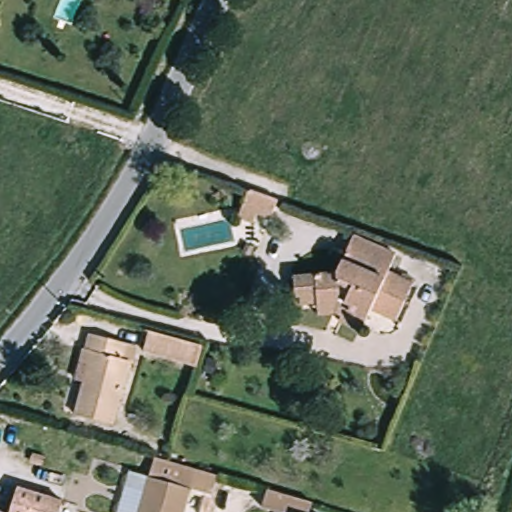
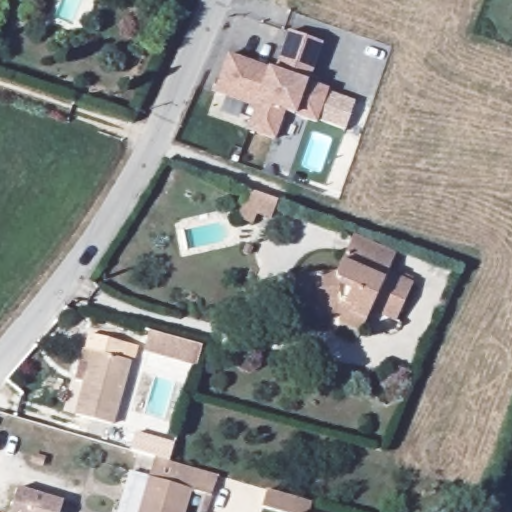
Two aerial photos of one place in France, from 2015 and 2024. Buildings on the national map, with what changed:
new [(308,82),(327,89),(316,122),(293,116),(285,113),(275,141),(246,132),(255,107),(213,93),(227,54),(273,67),(287,31),(321,43),(308,82)]
unchanged [(241,217),(245,208),(247,202),(249,196),(252,190),(279,199),(278,203),(275,210),(272,217),(261,213),(257,222),(241,217)]
unchanged [(334,320),(333,313),(317,316),(317,303),(299,306),(298,298),(296,277),(342,270),(358,236),(399,254),(392,269),(415,279),(398,317),(373,308),(368,318),(363,331),(334,320)]
unchanged [(202,343),(196,366),(144,351),(150,330),(202,343)]
unchanged [(100,350),(94,349),(99,333),(132,343),(127,358),(135,361),(128,386),(92,376),(100,350)]
unchanged [(128,386),(116,424),(81,415),(92,376),(128,386)]
unchanged [(169,460),(200,469),(192,496),(150,485),(159,457),(169,460)]
unchanged [(63,499),(59,512),(10,512),(17,485),(63,499)]
unchanged [(192,496),(187,512),(142,512),(150,485),(192,496)]
unchanged [(264,506),(270,488),(313,501),(310,512),(285,512),(264,506)]

